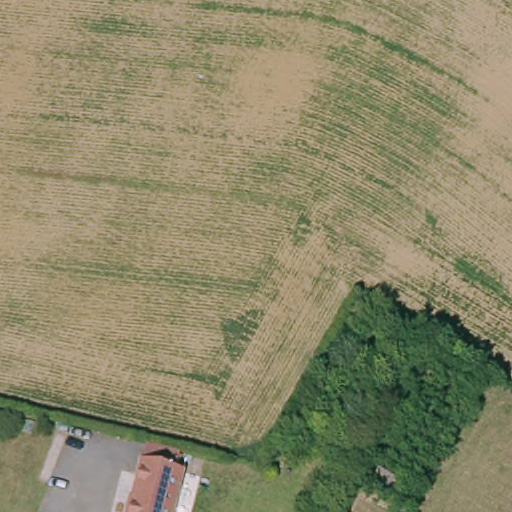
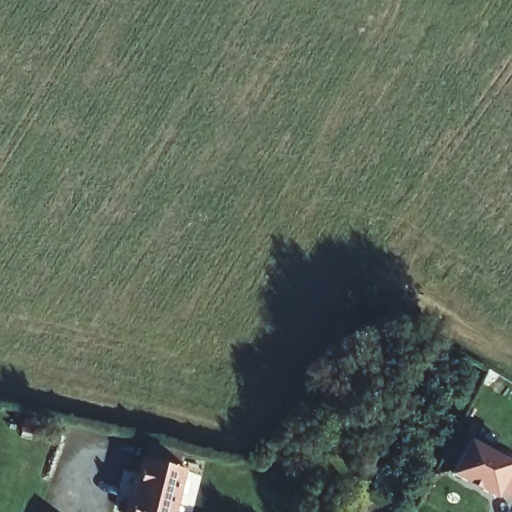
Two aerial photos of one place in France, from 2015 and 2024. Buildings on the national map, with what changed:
new [(512,499),(499,492),(496,497),(451,475),(469,441),(512,461),(512,499)]
unchanged [(182,463),(167,512),(122,512),(142,450),(182,463)]
demolished [(35,512),(26,512),(27,508),(35,512)]

